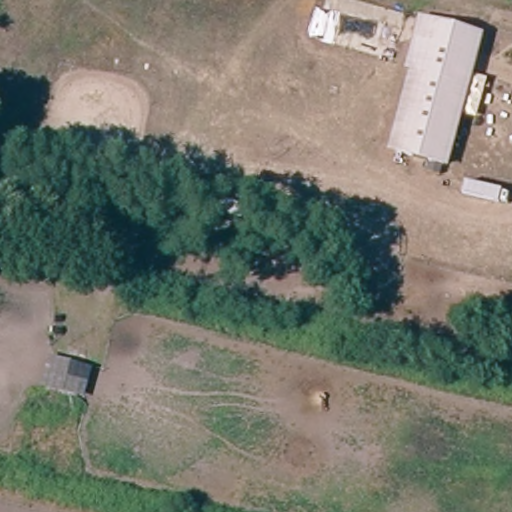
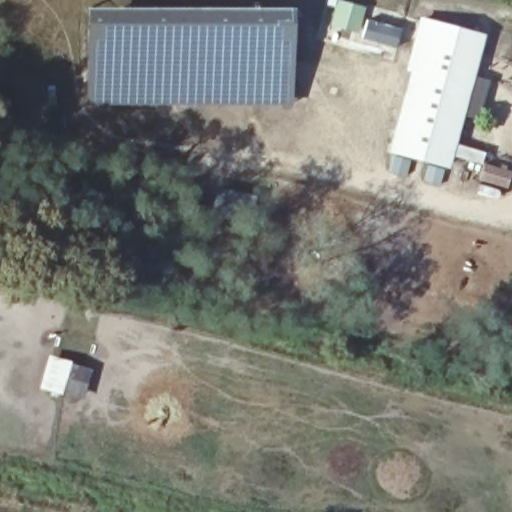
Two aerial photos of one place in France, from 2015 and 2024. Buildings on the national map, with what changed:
new [(95,0),(294,0),(294,91),(95,90),(95,0)]
unchanged [(481,38),(441,168),(393,153),(417,75),(412,59),(423,21),(481,38)]
new [(83,399),(39,388),(47,357),(91,368),(83,399)]

